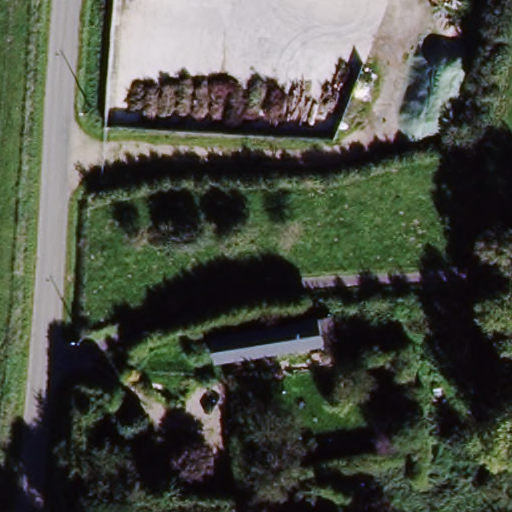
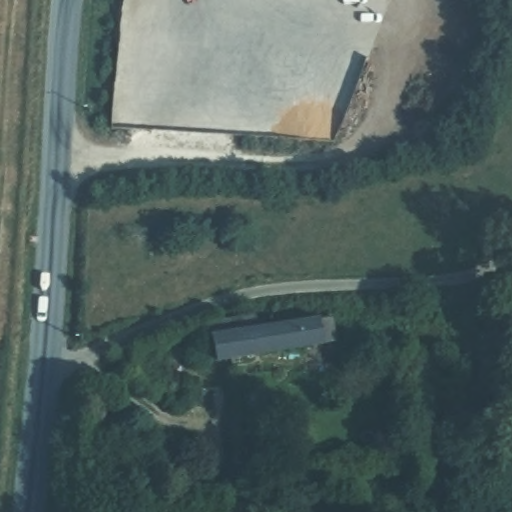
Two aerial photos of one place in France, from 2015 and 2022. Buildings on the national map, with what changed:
unchanged [(485,293),(486,312),(459,313),(458,294),(485,293)]
unchanged [(311,346),(225,359),(212,361),(208,339),(206,324),(256,316),(258,330),(307,322),(321,320),(327,344),(329,358),(314,361),(311,346)]

